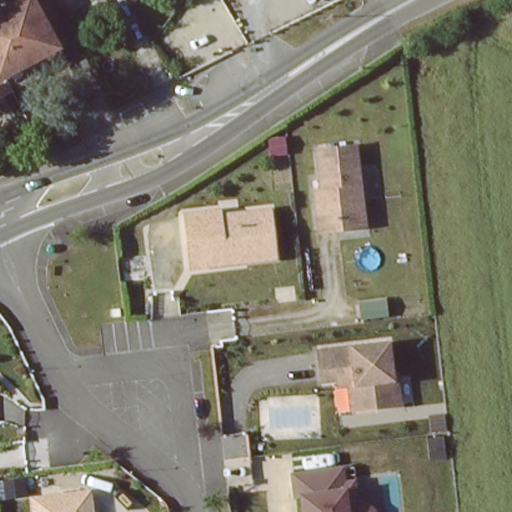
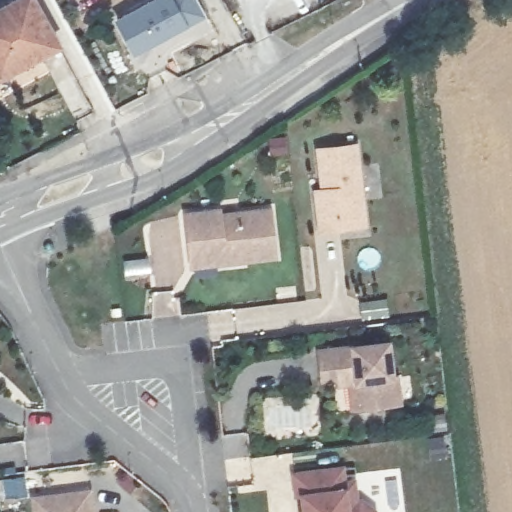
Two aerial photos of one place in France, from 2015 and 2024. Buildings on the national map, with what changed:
unchanged [(32,0),(54,43),(0,72),(0,8),(14,0),(32,0)]
new [(198,0),(207,16),(137,54),(115,19),(149,0),(198,0)]
unchanged [(373,227),(321,235),(315,189),(323,187),(320,150),(360,143),(373,227)]
unchanged [(274,209),(279,262),(192,275),(187,216),(274,209)]
unchanged [(392,344),(395,382),(408,380),(410,408),(354,413),(351,390),(340,392),(339,385),(323,385),(321,350),(353,348),(392,344)]
unchanged [(382,511),(381,512),(300,512),(295,479),(356,470),(365,507),(382,511)]
unchanged [(104,512),(32,512),(31,503),(101,492),(104,512)]

